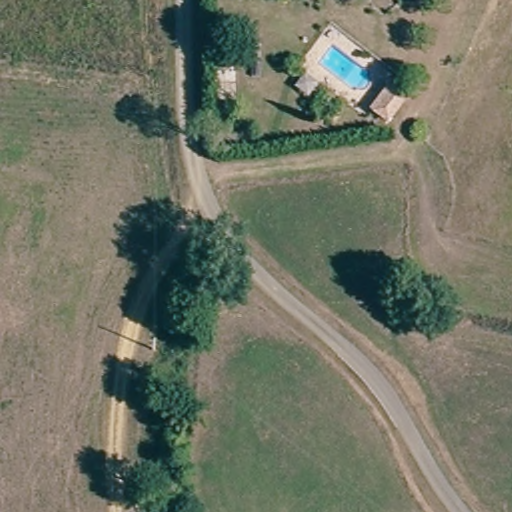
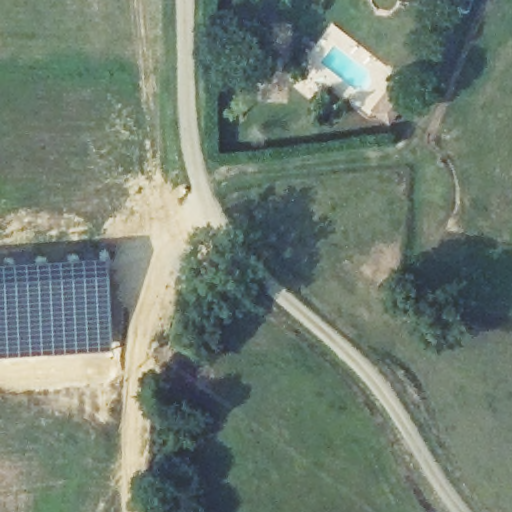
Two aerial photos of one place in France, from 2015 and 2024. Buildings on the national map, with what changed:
unchanged [(422,111),(409,104),(417,90),(421,92),(426,83),(428,79),(437,84),(422,111)]
new [(111,352),(0,358),(0,262),(106,256),(111,352)]

